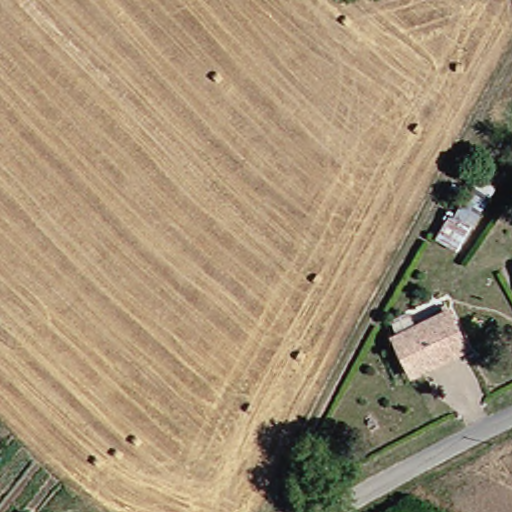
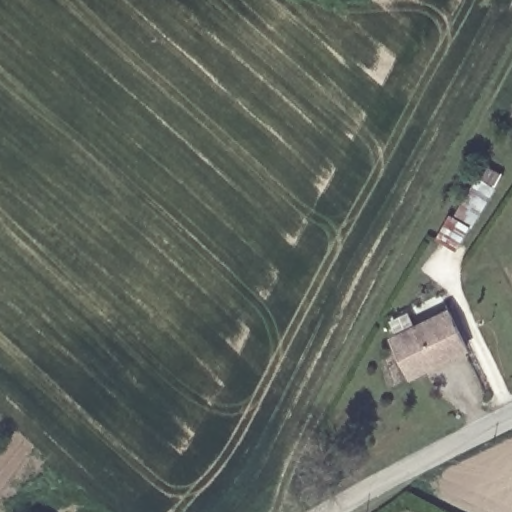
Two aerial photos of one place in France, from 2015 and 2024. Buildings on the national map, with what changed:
unchanged [(448,224),(467,235),(456,259),(437,248),(448,224)]
unchanged [(391,342),(445,314),(462,351),(409,376),(391,342)]

